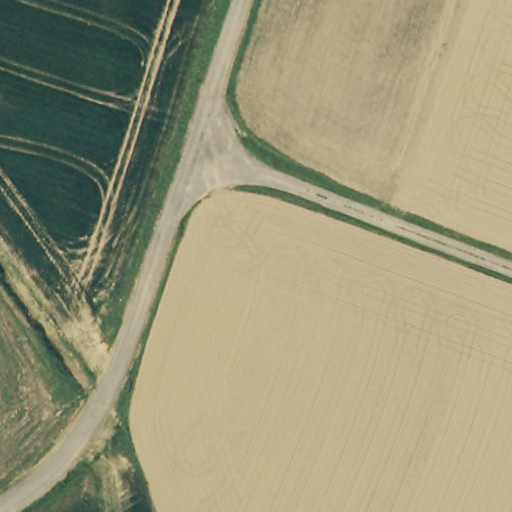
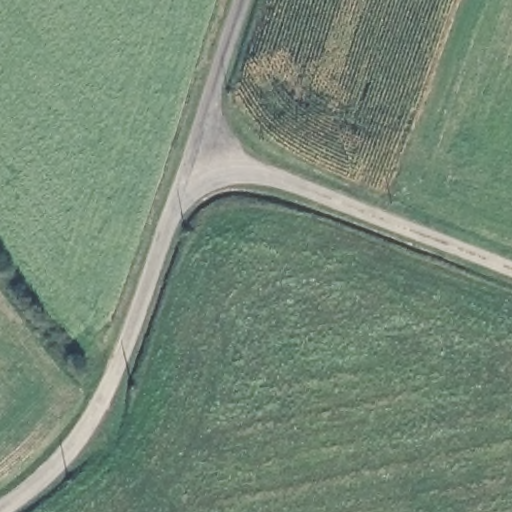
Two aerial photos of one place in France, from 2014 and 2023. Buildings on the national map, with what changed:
[]

